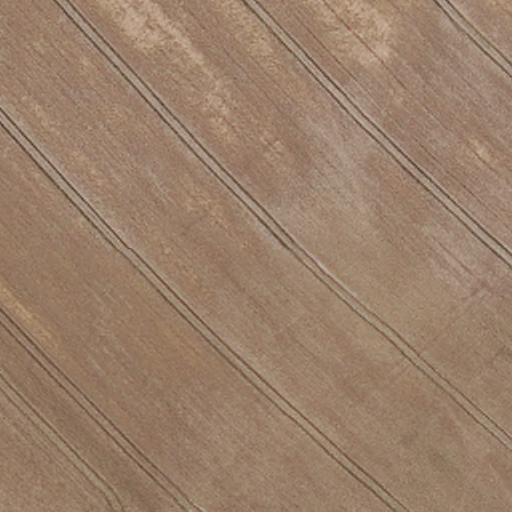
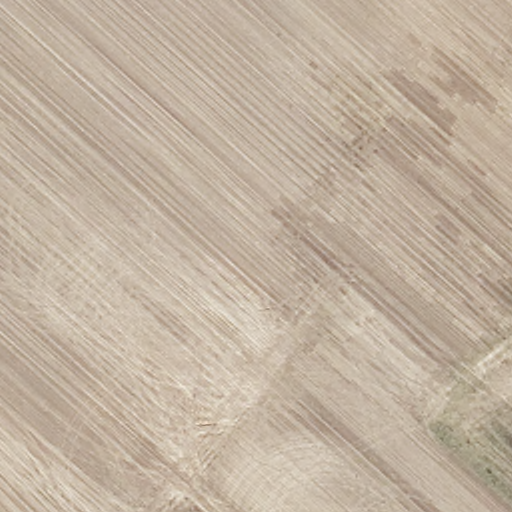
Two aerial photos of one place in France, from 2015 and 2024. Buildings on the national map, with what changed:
[]

